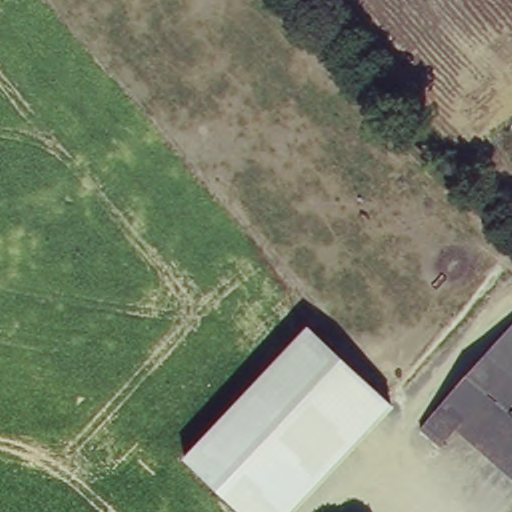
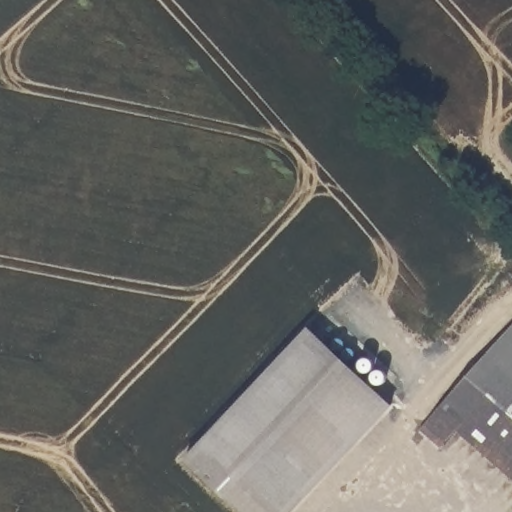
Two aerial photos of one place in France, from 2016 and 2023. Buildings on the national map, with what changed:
unchanged [(310,327),(392,406),(293,512),(242,512),(185,458),(310,327)]
unchanged [(441,452),(419,432),(512,329),(512,371),(458,432),(441,452)]
unchanged [(512,371),(512,479),(458,432),(512,371)]

